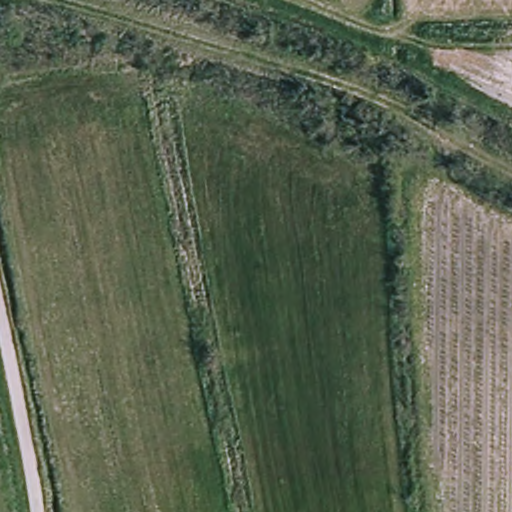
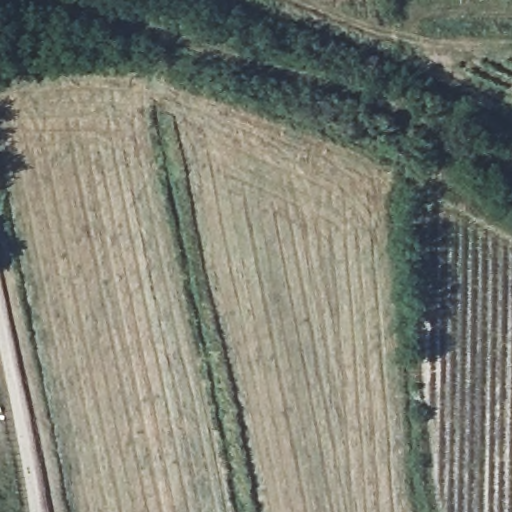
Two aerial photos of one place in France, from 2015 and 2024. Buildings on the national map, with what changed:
[]

